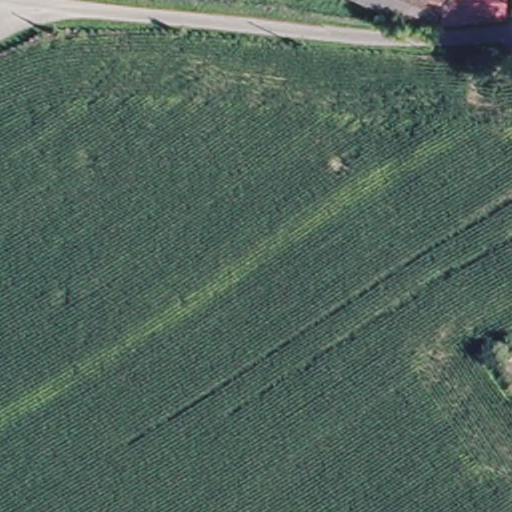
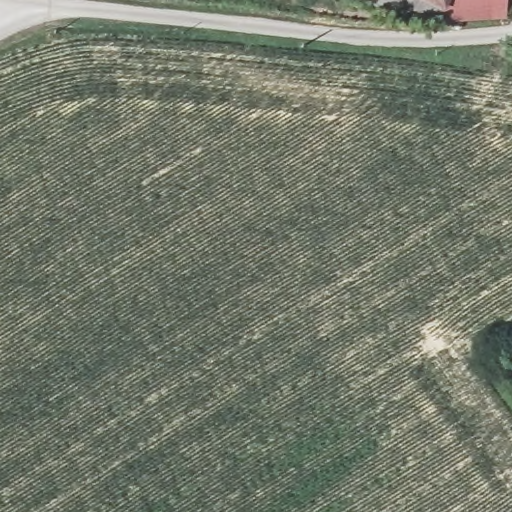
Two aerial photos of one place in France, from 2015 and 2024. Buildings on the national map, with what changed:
unchanged [(403,12),(379,0),(410,0),(403,12)]
unchanged [(445,5),(433,0),(507,0),(508,14),(445,19),(445,5)]

